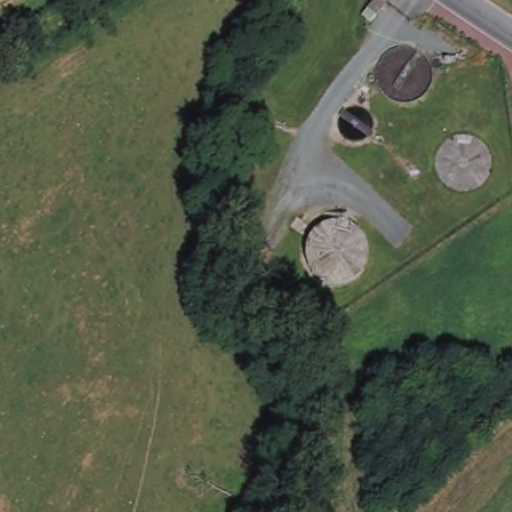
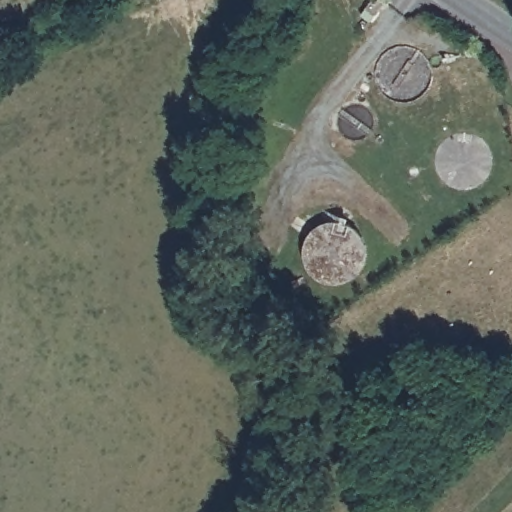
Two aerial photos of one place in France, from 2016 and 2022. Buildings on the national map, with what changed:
unchanged [(362,14),(373,0),(382,0),(385,2),(370,21),(362,14)]

